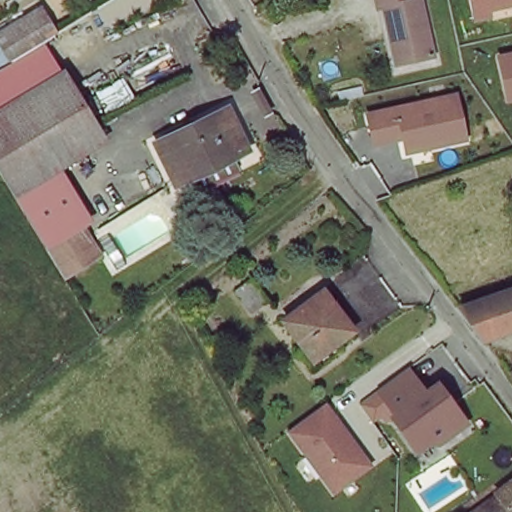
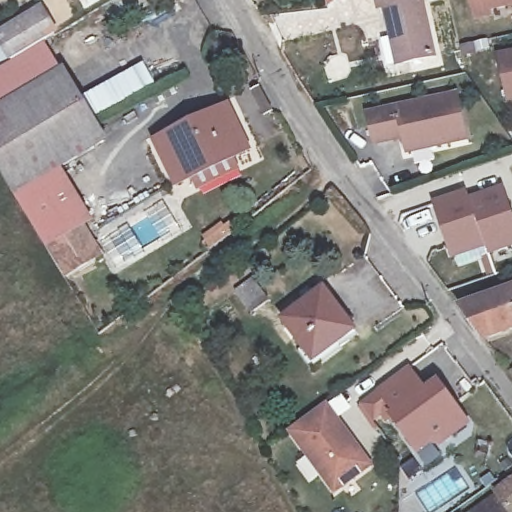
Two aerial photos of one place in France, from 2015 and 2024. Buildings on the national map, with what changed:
unchanged [(439,52),(432,55),(399,62),(388,5),(378,7),(377,0),(429,0),(439,52)]
unchanged [(497,18),(474,22),(469,0),(512,0),(512,7),(495,11),(497,18)]
unchanged [(13,54),(0,32),(0,30),(43,6),(57,29),(13,54)]
unchanged [(496,55),(512,51),(512,101),(506,102),(496,55)]
unchanged [(0,162),(0,102),(66,66),(107,137),(62,162),(16,187),(0,162)]
unchanged [(462,144),(402,158),(398,144),(370,150),(363,114),(453,97),(462,144)]
unchanged [(225,112),(243,156),(176,182),(159,141),(225,112)]
unchanged [(96,219),(85,226),(52,244),(16,187),(62,162),(96,219)]
new [(512,225),(512,242),(485,251),(482,245),(467,199),(500,188),(512,225)]
new [(465,192),(467,199),(482,245),(450,255),(433,202),(465,192)]
unchanged [(104,257),(73,277),(52,244),(85,226),(104,257)]
unchanged [(256,310),(241,292),(257,280),(270,300),(256,310)]
unchanged [(459,306),(506,291),(512,289),(512,330),(484,341),(459,306)]
unchanged [(315,361),(290,321),(334,292),(358,332),(315,361)]
unchanged [(395,414),(378,390),(408,368),(425,393),(438,384),(466,424),(438,444),(429,442),(416,452),(391,417),(395,414)]
unchanged [(512,374),(512,380),(509,376),(512,374)]
unchanged [(364,400),(375,392),(381,401),(370,408),(364,400)]
unchanged [(290,433),(324,408),(369,469),(335,495),(290,433)]
unchanged [(512,487),(512,512),(495,512),(490,503),(512,487)]
unchanged [(478,512),(490,503),(495,512),(478,512)]

